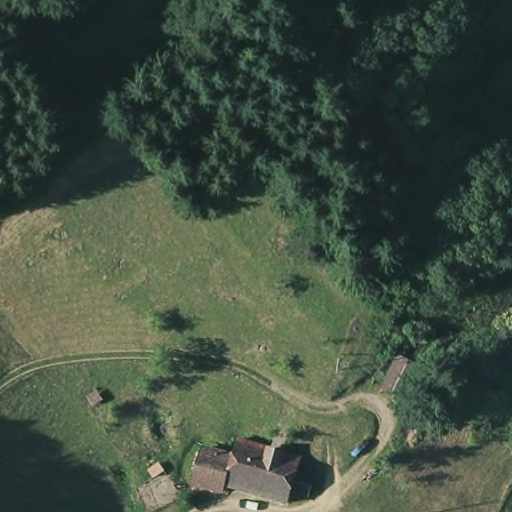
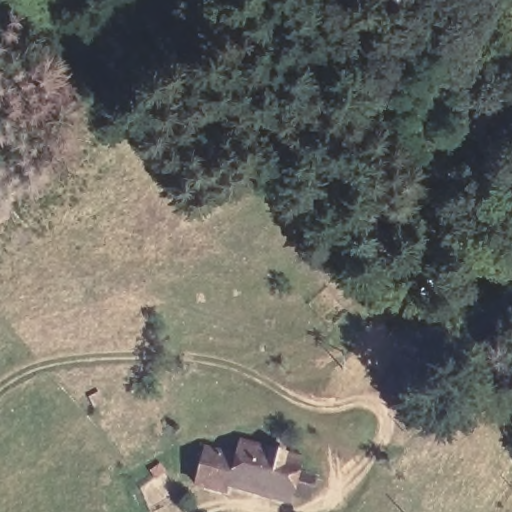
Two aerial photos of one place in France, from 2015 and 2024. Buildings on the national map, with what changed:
unchanged [(100,392),(105,402),(92,408),(88,398),(100,392)]
unchanged [(425,403),(428,420),(395,426),(391,408),(425,403)]
unchanged [(263,489),(233,481),(237,462),(240,453),(244,435),(307,454),(302,470),(294,497),(263,489)]
unchanged [(240,453),(237,462),(233,481),(231,488),(200,479),(210,445),(240,453)]

